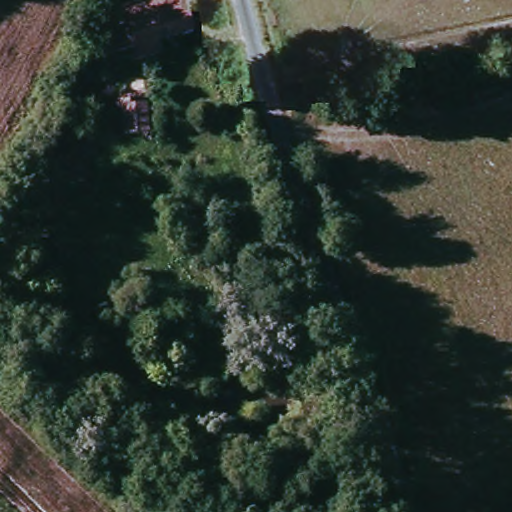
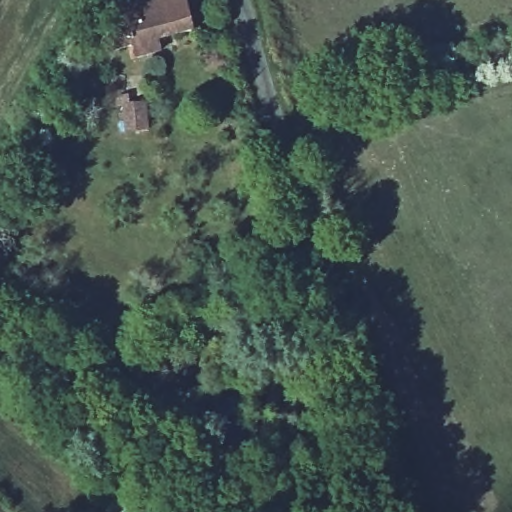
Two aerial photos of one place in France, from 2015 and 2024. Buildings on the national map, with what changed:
unchanged [(133,0),(151,0),(154,16),(188,8),(193,30),(119,47),(114,26),(126,23),(122,3),(133,0)]
unchanged [(126,130),(123,106),(144,103),(147,128),(126,130)]

